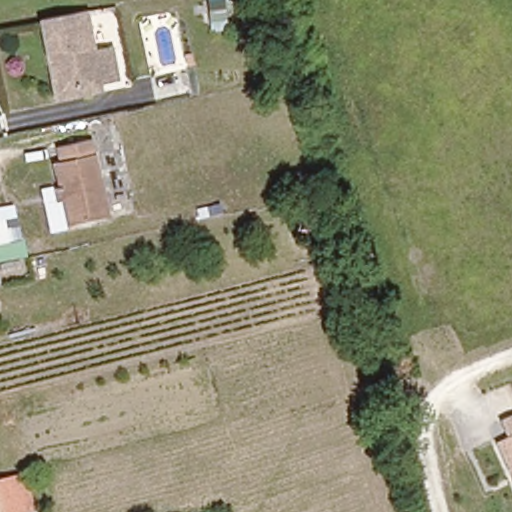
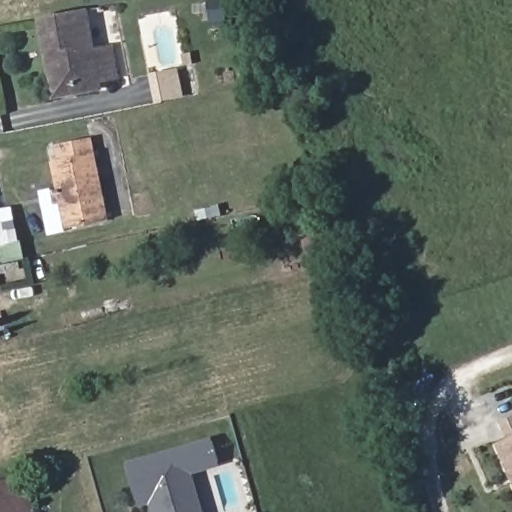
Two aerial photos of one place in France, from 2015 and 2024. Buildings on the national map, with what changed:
new [(210,0),(226,0),(226,17),(226,28),(210,28),(210,18),(210,0)]
unchanged [(54,92),(44,47),(37,13),(82,5),(91,46),(109,42),(116,71),(97,75),(99,84),(54,92)]
unchanged [(59,192),(62,191),(52,159),(59,157),(55,143),(86,134),(111,212),(77,223),(70,225),(59,192)]
unchanged [(494,441),(512,434),(512,488),(494,441)]
new [(139,508),(126,462),(212,437),(220,466),(193,475),(204,512),(152,512),(150,505),(139,508)]
unchanged [(38,476),(37,470),(39,470),(44,469),(45,474),(38,476)]
unchanged [(33,512),(1,512),(0,507),(0,477),(22,471),(33,512)]
unchanged [(0,512),(0,507),(1,512),(0,512)]

